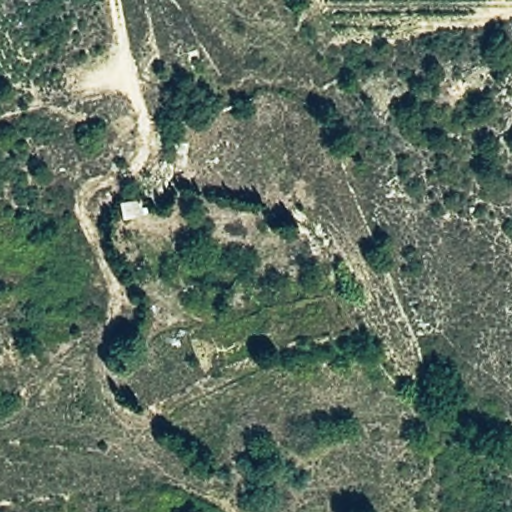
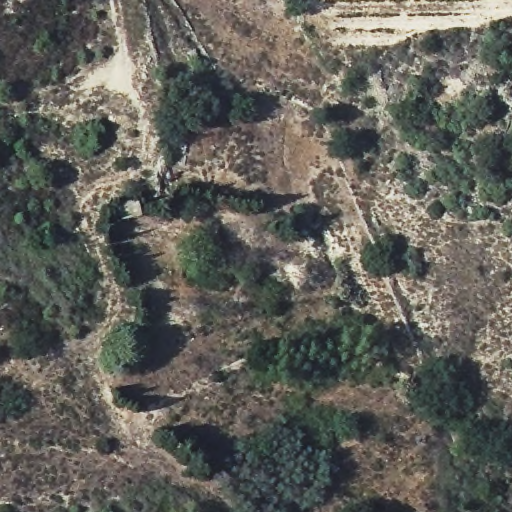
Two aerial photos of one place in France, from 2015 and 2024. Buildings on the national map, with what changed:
unchanged [(118,222),(114,203),(143,198),(146,219),(118,222)]

